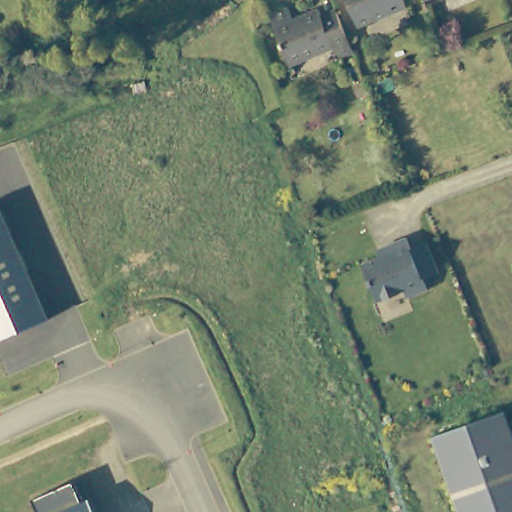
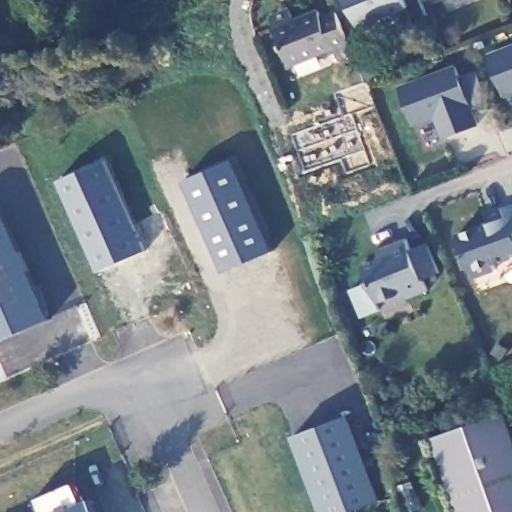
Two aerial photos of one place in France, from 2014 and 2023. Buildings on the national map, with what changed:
unchanged [(360,21),(352,0),(402,0),(403,3),(360,21)]
unchanged [(357,49),(341,56),(336,45),(295,62),(272,12),(291,3),(296,14),(316,5),(322,18),(340,10),(357,49)]
new [(503,97),(486,54),(512,44),(512,94),(503,97)]
new [(487,101),(470,107),(477,124),(442,138),(435,117),(414,127),(399,85),(455,63),(460,75),(478,71),(487,101)]
new [(145,251),(97,271),(57,180),(105,158),(145,251)]
new [(234,159),(275,251),(226,272),(185,181),(234,159)]
new [(494,264),(495,272),(473,278),(456,234),(488,222),(507,215),(504,207),(512,205),(512,257),(494,264)]
unchanged [(0,211),(49,321),(0,340),(0,211)]
unchanged [(445,278),(429,284),(433,296),(413,303),(411,296),(384,306),(370,267),(399,256),(396,249),(414,242),(418,254),(434,249),(445,278)]
unchanged [(432,435),(504,408),(512,429),(512,512),(461,512),(432,435)]
new [(349,512),(322,512),(292,436),(349,415),(380,501),(349,512)]
unchanged [(83,503),(87,502),(92,512),(38,512),(32,502),(73,482),(83,503)]

